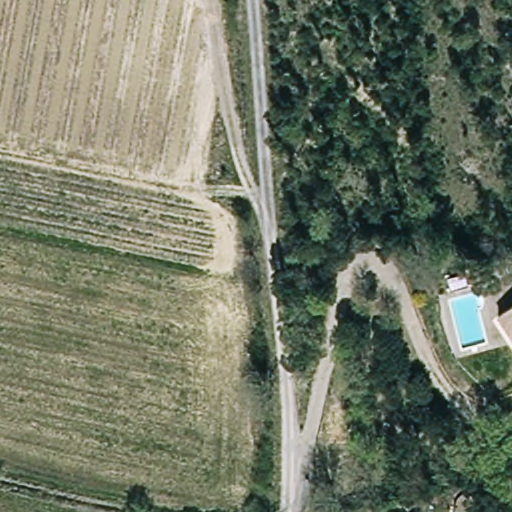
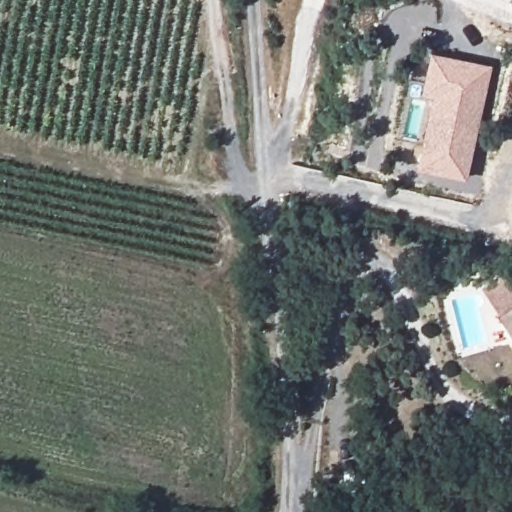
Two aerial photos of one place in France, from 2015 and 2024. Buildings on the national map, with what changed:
new [(465,179),(415,167),(432,95),(420,92),(430,50),(492,65),(465,179)]
unchanged [(496,321),(512,308),(512,343),(496,321)]

